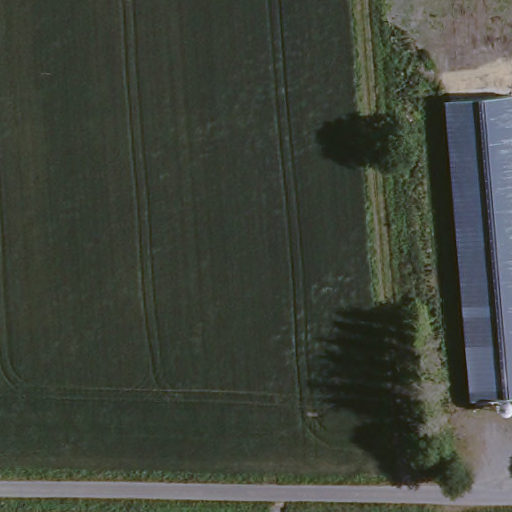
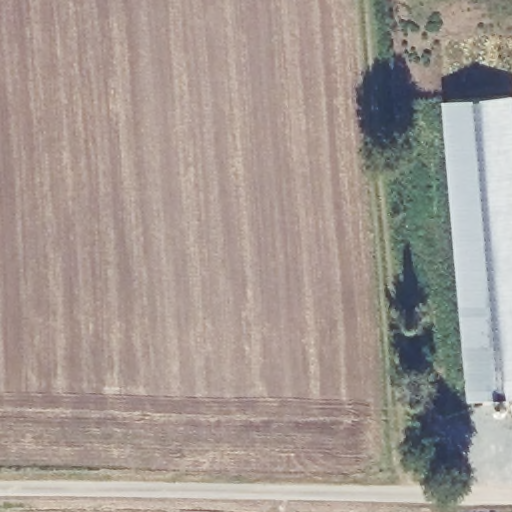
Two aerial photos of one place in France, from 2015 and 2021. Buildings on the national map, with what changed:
unchanged [(460,398),(452,98),(512,97),(512,397),(460,398)]

